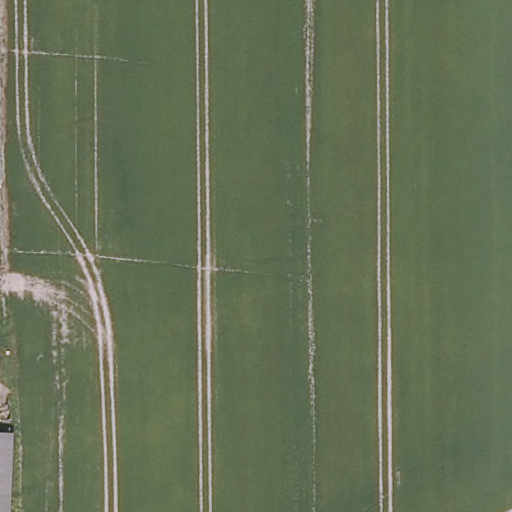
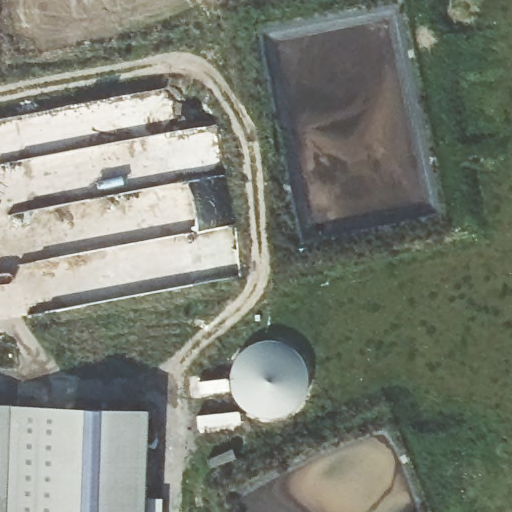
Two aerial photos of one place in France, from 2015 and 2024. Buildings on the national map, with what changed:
new [(0,512),(0,403),(151,409),(146,512),(0,512)]
demolished [(12,512),(0,512),(0,439),(15,439),(12,512)]

